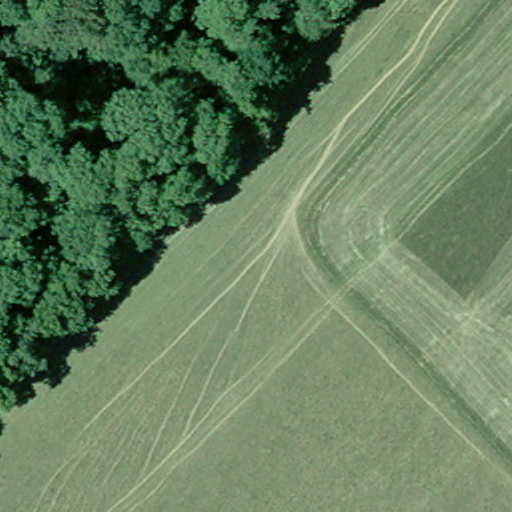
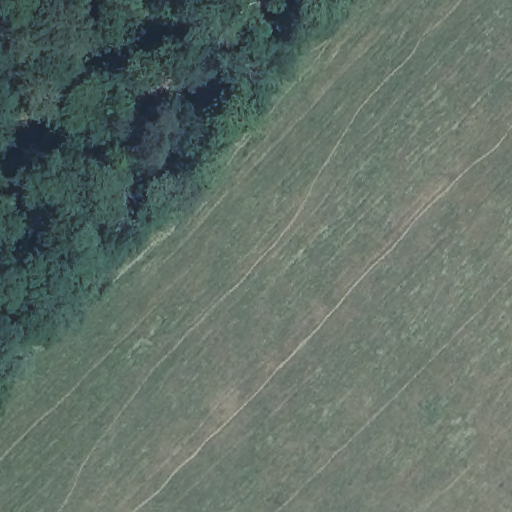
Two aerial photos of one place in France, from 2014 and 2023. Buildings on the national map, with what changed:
[]

